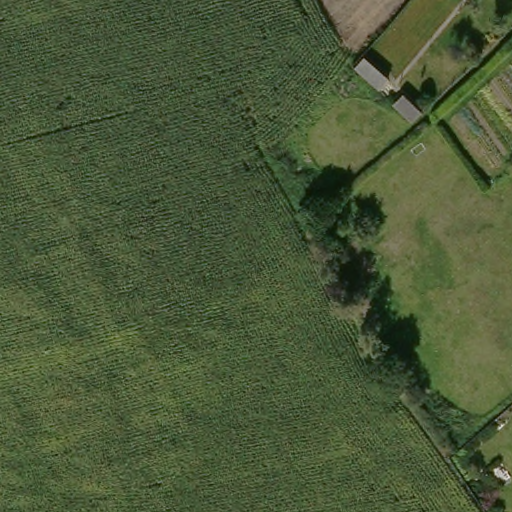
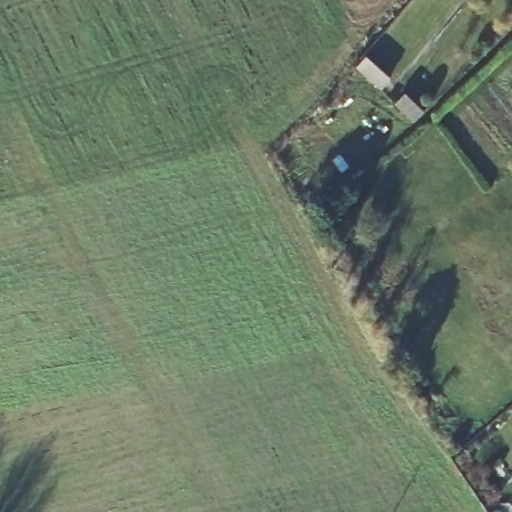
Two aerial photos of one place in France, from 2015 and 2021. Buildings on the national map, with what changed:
unchanged [(358,67),(365,59),(388,80),(380,88),(358,67)]
unchanged [(395,102),(403,93),(422,111),(414,119),(395,102)]

